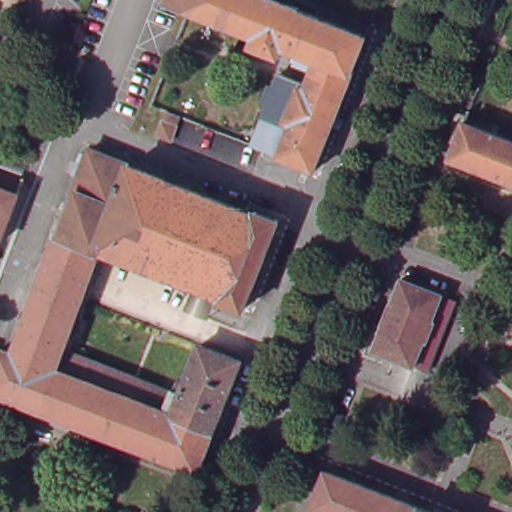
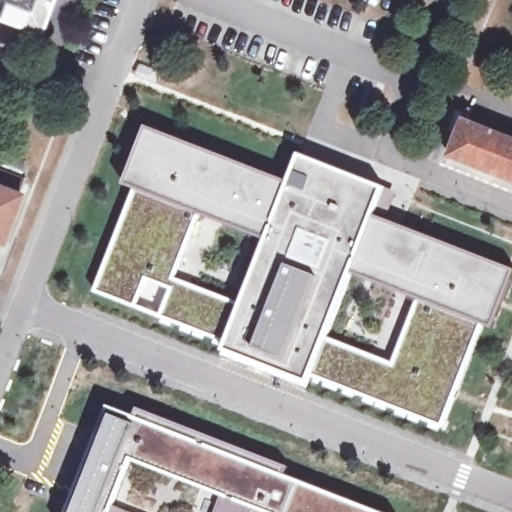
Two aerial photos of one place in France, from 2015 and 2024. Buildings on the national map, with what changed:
new [(0,21),(0,0),(53,0),(40,35),(0,21)]
demolished [(273,103),(271,99),(275,89),(277,88),(279,87),(281,89),(287,74),(313,84),(323,60),(291,48),(287,56),(260,45),(263,36),(196,10),(177,2),(178,0),(287,0),(307,8),(306,10),(373,35),(359,71),(360,71),(321,170),(258,146),(275,104),(273,103)]
unchanged [(467,120),(512,138),(512,181),(452,158),(467,120)]
new [(288,180),(300,152),(385,186),(398,190),(385,220),(512,268),(512,281),(493,327),(482,322),(443,425),(313,369),(308,381),(223,348),(226,339),(163,316),(174,288),(148,278),(137,306),(95,290),(135,188),(124,184),(146,125),(288,180)]
demolished [(181,390),(185,381),(191,385),(207,345),(248,361),(208,462),(205,471),(0,392),(0,366),(7,348),(19,352),(65,233),(70,235),(85,195),(81,193),(88,175),(98,150),(260,213),(262,210),(286,220),(251,308),(227,300),(228,298),(225,297),(204,288),(201,287),(111,252),(107,252),(102,265),(89,300),(80,322),(77,328),(68,353),(62,369),(172,411),(178,395),(180,390),(181,390)]
unchanged [(21,194),(1,242),(0,241),(0,171),(26,180),(21,194)]
demolished [(386,324),(384,323),(391,305),(393,305),(403,279),(444,295),(434,321),(436,322),(429,341),(426,340),(416,366),(375,350),(386,324)]
new [(108,406),(135,416),(138,407),(290,466),(286,476),(381,512),(67,512),(108,406)]
demolished [(333,470),(441,512),(316,512),(333,470)]

